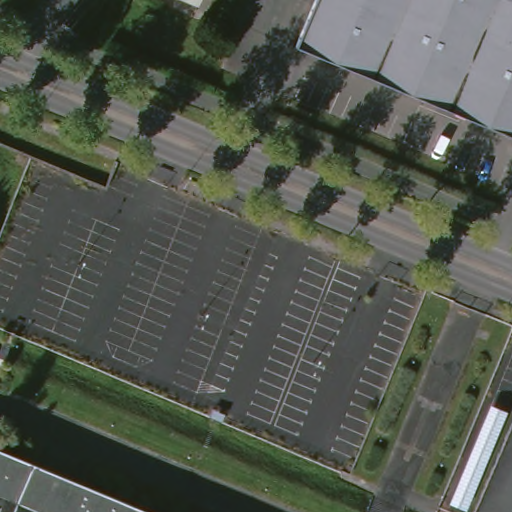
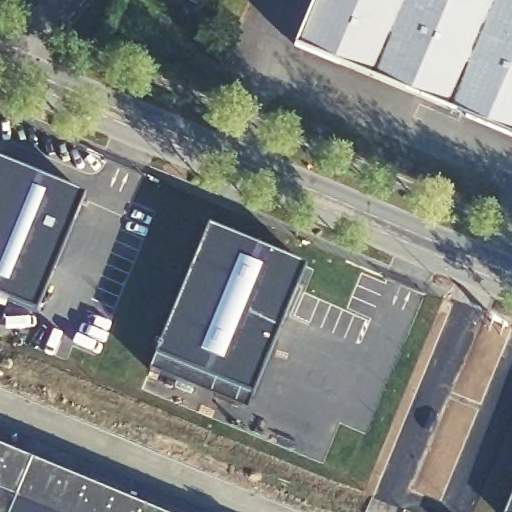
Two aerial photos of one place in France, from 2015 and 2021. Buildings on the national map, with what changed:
unchanged [(197,5),(186,0),(199,0),(197,5)]
unchanged [(512,134),(296,47),(316,0),(512,0),(512,134)]
new [(85,195),(36,312),(0,297),(0,159),(85,195)]
new [(208,225),(306,267),(252,396),(155,356),(208,225)]
new [(155,356),(252,396),(247,410),(149,370),(155,356)]
unchanged [(160,512),(0,512),(0,445),(160,512)]
new [(512,512),(503,512),(512,491),(512,512)]

